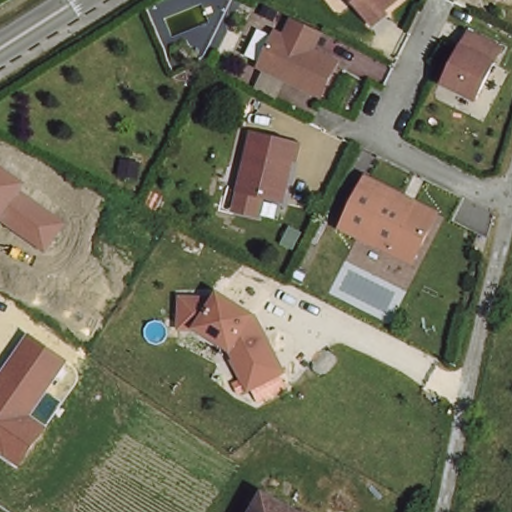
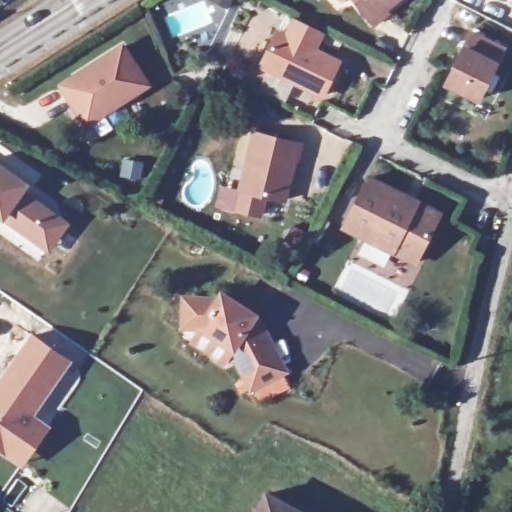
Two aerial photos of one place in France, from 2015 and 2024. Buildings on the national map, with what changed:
unchanged [(383,12),(386,16),(374,26),(354,0),(398,0),(383,12)]
unchanged [(286,31),(293,16),(328,33),(320,48),(341,61),(324,95),(287,77),(277,98),(257,88),(266,69),(259,66),(277,28),(286,31)]
unchanged [(505,51),(478,100),(447,83),(474,33),(505,51)]
new [(85,128),(57,86),(124,43),(152,85),(85,128)]
unchanged [(242,188),(257,128),(300,140),(287,198),(242,188)]
unchanged [(25,184),(22,191),(69,225),(50,253),(3,222),(0,220),(0,166),(25,184)]
unchanged [(414,268),(345,232),(369,179),(441,219),(414,268)]
unchanged [(215,295),(220,290),(257,313),(287,369),(247,390),(230,351),(195,328),(179,327),(182,296),(215,295)]
unchanged [(69,362),(33,417),(49,428),(22,466),(0,451),(0,379),(30,334),(69,362)]
unchanged [(292,512),(256,512),(262,499),(292,512)]

